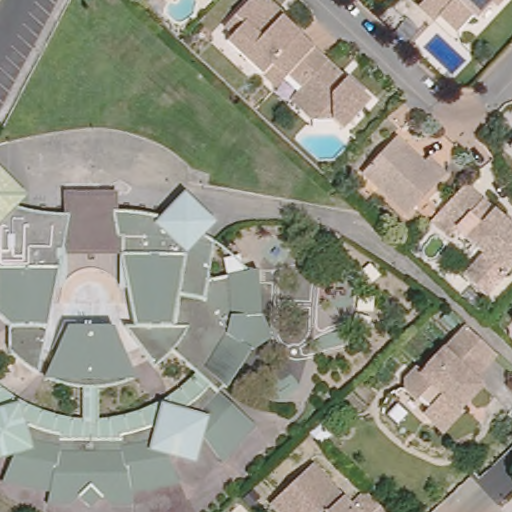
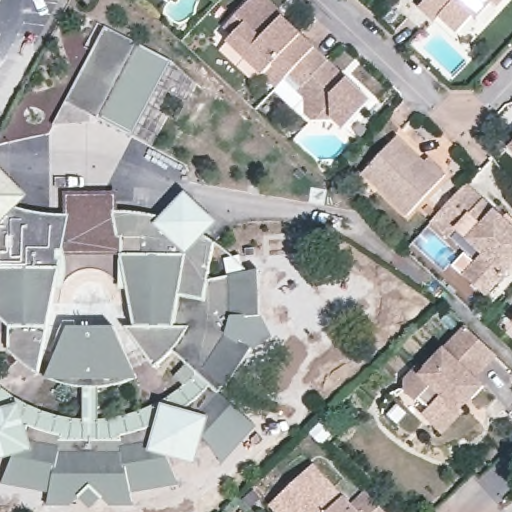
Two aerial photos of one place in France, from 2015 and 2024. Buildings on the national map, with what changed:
unchanged [(227,23),(237,11),(247,0),(271,0),(282,10),(279,14),(314,45),(291,69),(279,81),(231,38),(236,32),(227,23)]
unchanged [(470,17),(457,31),(442,17),(437,23),(422,8),(429,0),(496,0),(491,6),(487,2),(472,19),(470,17)]
new [(171,59),(133,135),(100,118),(52,125),(105,23),(171,59)]
unchanged [(300,85),(304,80),(291,69),(314,45),(328,58),(347,75),(353,81),(370,97),(343,128),(333,117),(317,114),(308,106),(293,92),(300,85)]
unchanged [(395,135),(425,160),(428,156),(445,173),(407,213),(363,170),(392,139),(395,135)]
unchanged [(510,144),(512,142),(512,146),(510,144)]
unchanged [(27,191),(24,206),(70,213),(38,372),(20,359),(8,349),(8,328),(0,319),(0,169),(2,167),(27,191)]
unchanged [(492,296),(470,277),(490,256),(462,231),(455,239),(440,226),(436,222),(470,185),(475,189),(512,224),(512,274),(492,296)]
unchanged [(120,289),(116,281),(110,273),(99,269),(89,268),(78,272),(68,279),(63,289),(55,289),(70,213),(63,212),(64,190),(116,191),(116,209),(113,208),(118,235),(124,238),(124,250),(121,252),(127,289),(120,289)]
unchanged [(54,493),(6,485),(10,476),(30,425),(1,410),(0,411),(0,390),(6,395),(36,412),(66,420),(84,422),(82,386),(69,383),(52,377),(45,375),(67,324),(114,325),(137,375),(125,380),(109,384),(98,386),(99,422),(124,417),(153,409),(166,402),(201,376),(175,351),(157,365),(125,324),(133,324),(121,252),(124,250),(124,238),(118,235),(113,208),(160,216),(187,191),(216,221),(209,234),(218,239),(212,277),(258,269),(261,311),(271,333),(250,348),(230,384),(224,383),(219,389),(247,417),(255,425),(223,460),(217,453),(185,409),(157,426),(176,474),(181,484),(135,492),(135,495),(135,504),(114,506),(107,497),(95,508),(83,498),(76,506),(54,506),(54,497),(54,493)]
unchanged [(415,407),(399,400),(400,387),(415,374),(420,379),(465,333),(492,359),(470,382),(481,394),(468,408),(467,407),(457,417),(458,418),(437,439),(420,424),(425,419),(415,407)]
unchanged [(415,407),(409,412),(399,402),(399,400),(414,405),(415,407)]
new [(157,426),(185,409),(204,435),(196,464),(169,456),(157,426)]
new [(30,425),(18,457),(0,461),(0,411),(1,410),(30,425)]
new [(333,428),(320,440),(309,429),(322,417),(333,428)]
unchanged [(309,463),(348,504),(364,488),(386,512),(277,512),(269,503),(309,463)]
new [(253,485),(260,493),(249,503),(242,495),(253,485)]

